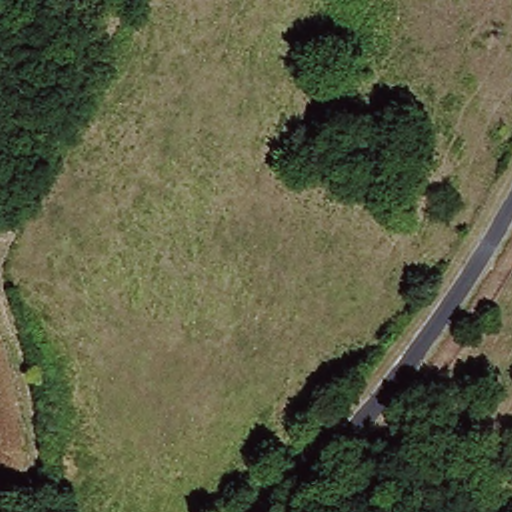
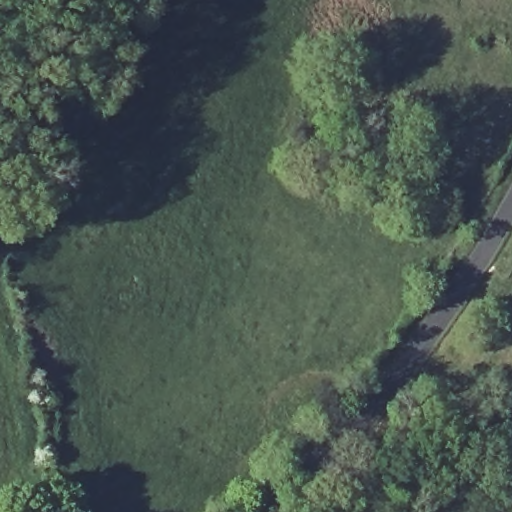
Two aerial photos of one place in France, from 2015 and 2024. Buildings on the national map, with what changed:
[]

